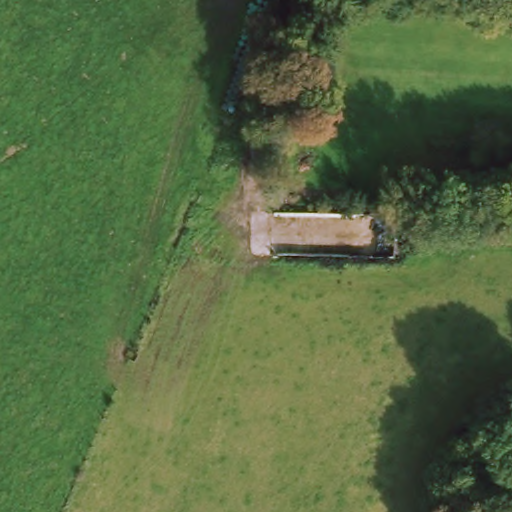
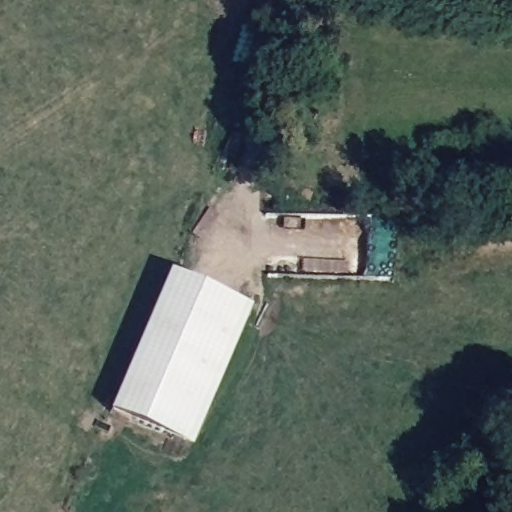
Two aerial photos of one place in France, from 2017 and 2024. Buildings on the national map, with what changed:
new [(169,275),(251,310),(191,450),(109,414),(169,275)]

